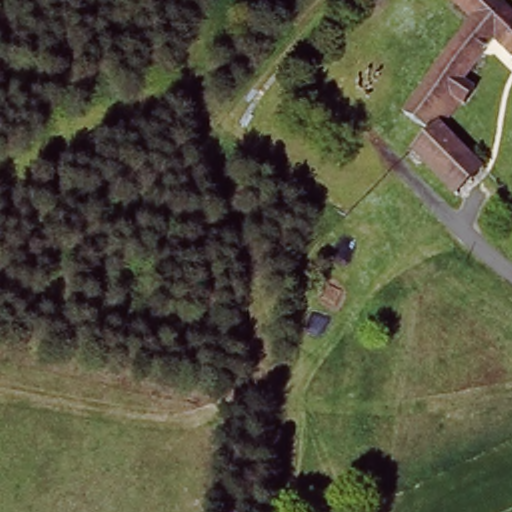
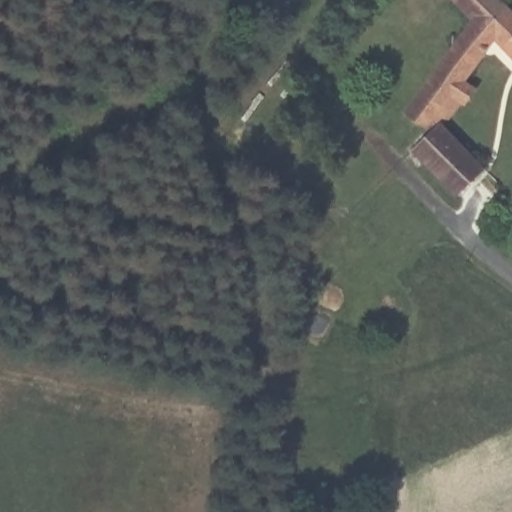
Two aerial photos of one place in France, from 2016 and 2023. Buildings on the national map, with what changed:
unchanged [(471,19),(452,0),(503,0),(512,9),(512,58),(495,42),(468,82),(480,94),(470,109),(457,98),(426,133),(404,111),(471,19)]
unchanged [(456,200),(411,151),(443,123),(484,171),(456,200)]

